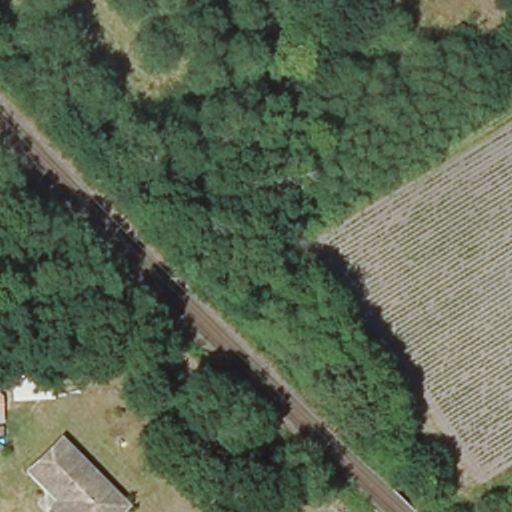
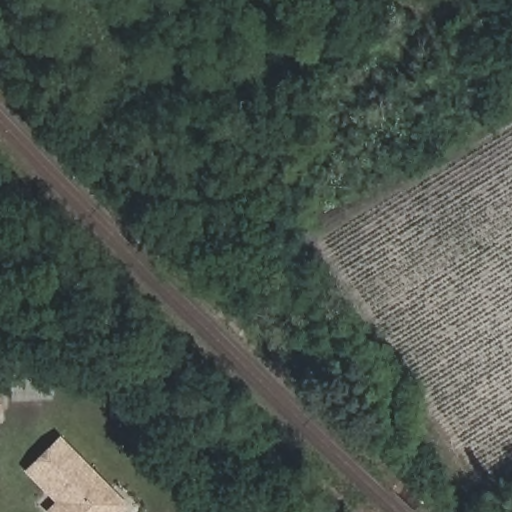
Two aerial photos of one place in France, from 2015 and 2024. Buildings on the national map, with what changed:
unchanged [(0,395),(4,396),(5,411),(0,411),(0,395)]
unchanged [(108,512),(50,512),(45,507),(55,498),(50,493),(25,467),(56,437),(105,487),(119,502),(108,512)]

